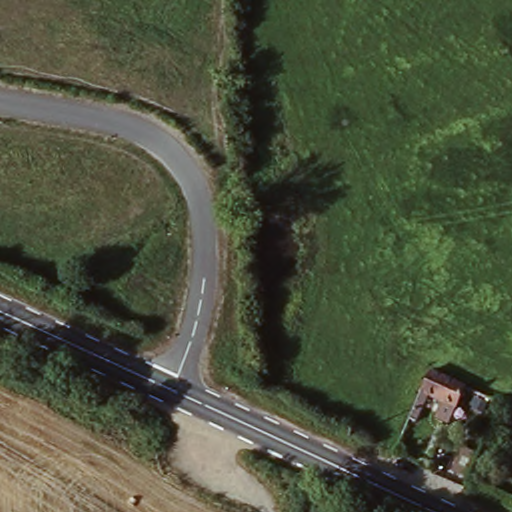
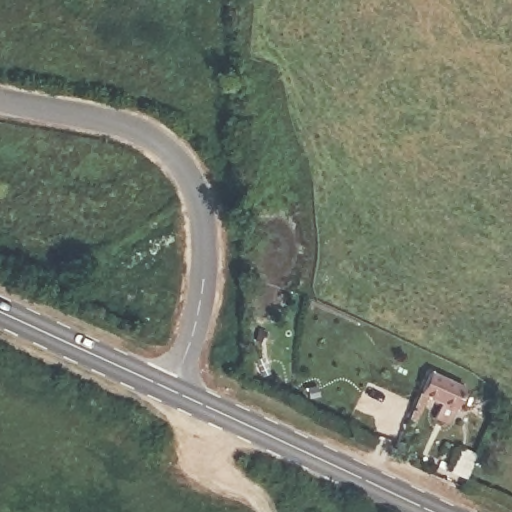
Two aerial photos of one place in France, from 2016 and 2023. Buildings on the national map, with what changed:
unchanged [(432,374),(467,390),(456,412),(422,395),(432,374)]
unchanged [(467,480),(451,472),(461,447),(479,456),(467,480)]

